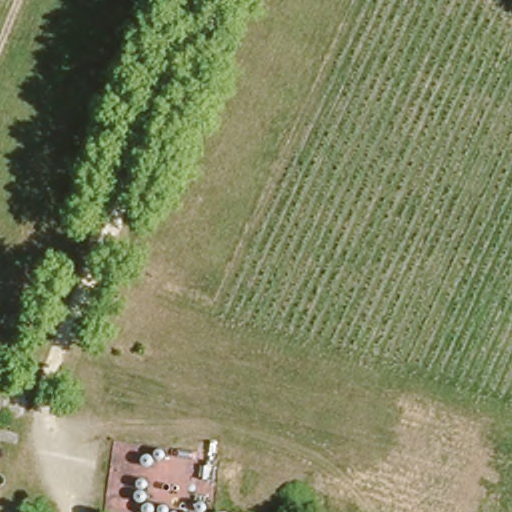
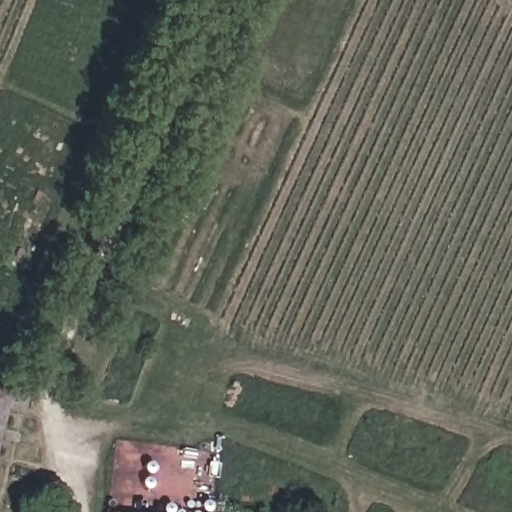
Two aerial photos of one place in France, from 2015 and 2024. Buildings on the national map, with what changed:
unchanged [(8,380),(0,413),(0,378),(8,380)]
unchanged [(114,505),(159,512),(113,512),(114,505)]

